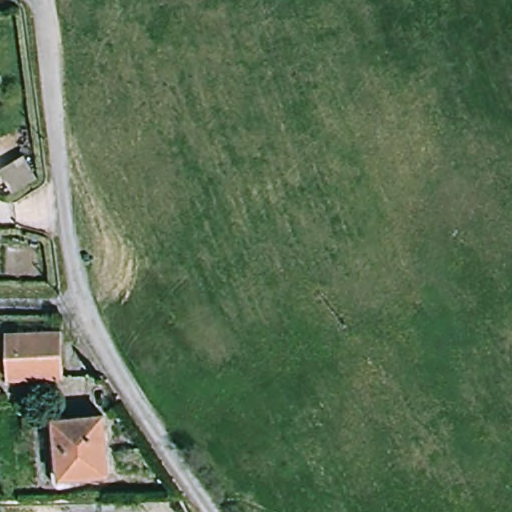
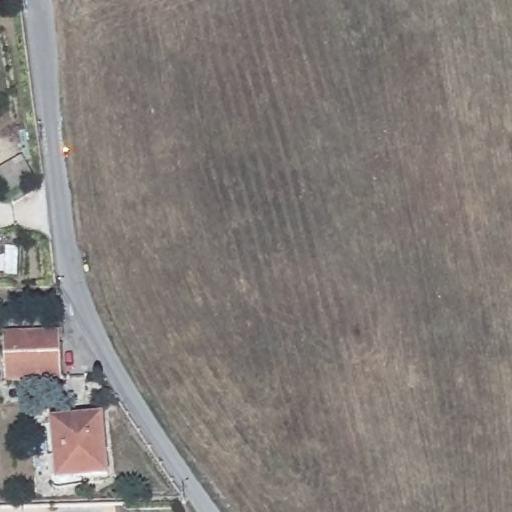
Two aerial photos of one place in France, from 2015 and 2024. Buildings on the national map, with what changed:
unchanged [(61,379),(5,381),(3,335),(59,333),(61,379)]
unchanged [(107,477),(51,482),(48,447),(54,446),(52,422),(101,418),(107,477)]

